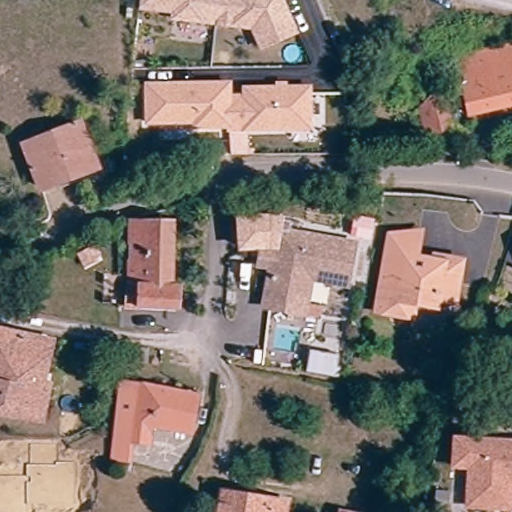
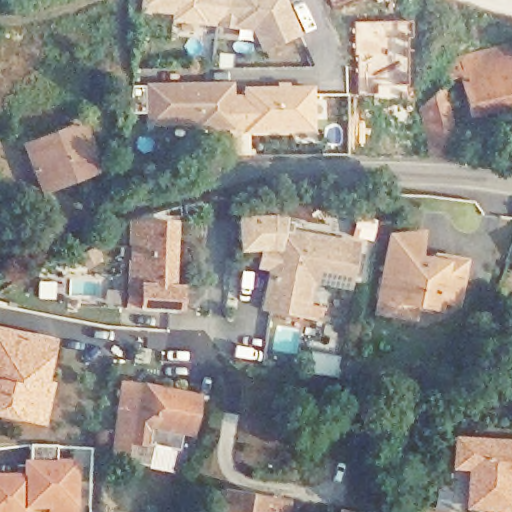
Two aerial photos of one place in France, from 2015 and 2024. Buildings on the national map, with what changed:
unchanged [(176,19),(177,12),(142,9),(143,0),(285,0),(299,32),(264,47),(255,27),(235,25),(219,23),(176,19)]
new [(330,7),(328,0),(346,0),(330,7)]
new [(409,20),(409,37),(405,37),(404,85),(373,85),(373,95),(354,94),(355,56),(352,56),(352,22),(409,20)]
unchanged [(458,73),(446,76),(443,63),(454,60),(512,45),(512,104),(469,116),(458,73)]
unchanged [(452,152),(425,150),(414,105),(434,83),(452,152)]
unchanged [(228,85),(228,97),(243,97),(243,89),(308,87),(309,129),(228,131),(228,127),(193,129),(193,124),(146,125),(145,87),(228,85)]
unchanged [(95,170),(39,191),(23,147),(79,126),(95,170)]
unchanged [(248,130),(249,155),(230,156),(228,131),(248,130)]
unchanged [(368,216),(364,235),(345,231),(349,212),(368,216)]
unchanged [(238,252),(235,214),(283,214),(283,222),(289,223),(288,230),(357,242),(350,290),(339,288),(346,248),(286,239),(271,236),(269,250),(238,252)]
unchanged [(129,288),(131,225),(171,227),(169,288),(178,289),(177,312),(152,311),(142,311),(128,311),(129,288)]
unchanged [(396,313),(377,310),(388,235),(417,231),(413,256),(434,259),(435,253),(445,255),(462,257),(456,300),(439,297),(438,303),(414,300),(411,316),(396,313)]
unchanged [(315,321),(300,318),(259,312),(261,301),(264,284),(265,277),(266,272),(254,270),(256,257),(268,258),(271,236),(346,248),(339,288),(306,283),(303,299),(318,302),(315,321)]
unchanged [(512,248),(512,260),(507,258),(512,248)]
unchanged [(18,341),(49,347),(39,395),(32,431),(10,426),(0,424),(0,337),(18,341)]
unchanged [(142,348),(142,363),(127,363),(127,348),(142,348)]
unchanged [(338,355),(336,376),(307,372),(310,350),(338,355)]
unchanged [(151,390),(196,398),(189,436),(147,428),(144,447),(127,445),(124,463),(105,461),(108,440),(109,422),(112,422),(116,391),(129,392),(150,395),(151,390)]
unchanged [(466,506),(467,485),(470,485),(471,467),(452,466),(454,437),(512,441),(512,480),(511,480),(510,508),(495,507),(466,506)]
new [(32,508),(32,512),(0,512),(0,474),(26,474),(26,460),(32,460),(31,445),(58,445),(58,460),(79,460),(80,512),(48,512),(48,509),(32,508)]
unchanged [(396,488),(376,482),(380,470),(400,476),(396,488)]
unchanged [(220,512),(222,494),(287,504),(286,512),(220,512)]
unchanged [(349,512),(339,512),(339,511),(349,512)]

